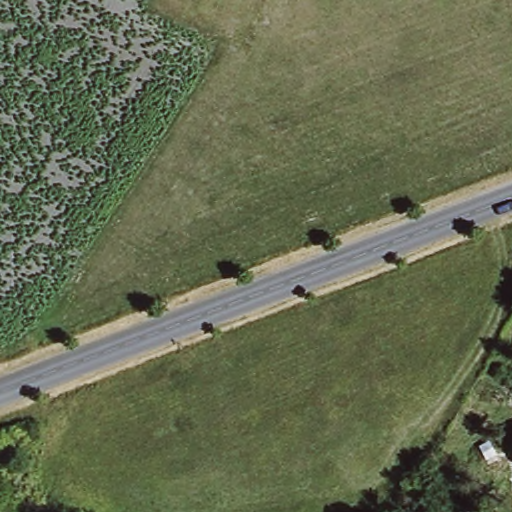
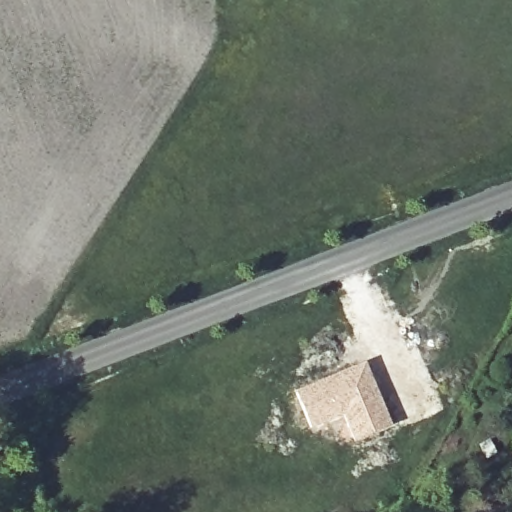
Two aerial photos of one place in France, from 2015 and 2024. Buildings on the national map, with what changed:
new [(365,362),(393,426),(353,444),(341,418),(310,430),(293,390),(365,362)]

